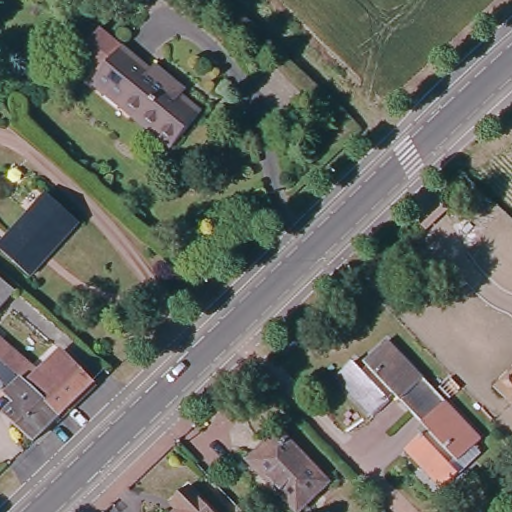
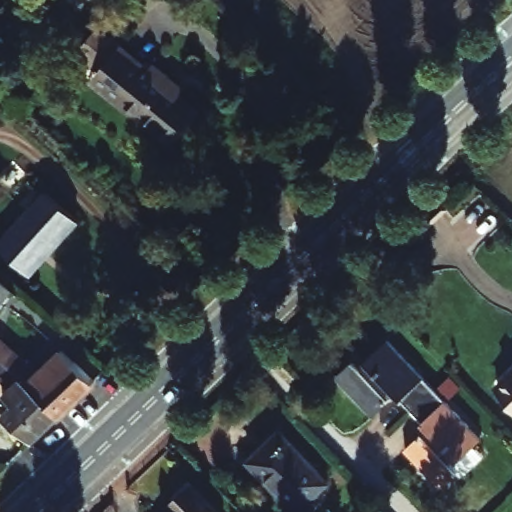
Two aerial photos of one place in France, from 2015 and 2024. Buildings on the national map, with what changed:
unchanged [(108,78),(85,60),(103,36),(128,55),(153,76),(157,70),(180,89),(176,95),(203,116),(175,150),(126,111),(99,89),(108,78)]
unchanged [(74,217),(26,273),(0,250),(0,243),(43,191),(74,217)]
unchanged [(19,291),(0,312),(0,274),(19,291)]
unchanged [(46,376),(65,356),(76,367),(80,365),(98,385),(64,417),(0,358),(0,335),(46,376)]
unchanged [(414,413),(413,415),(399,401),(376,423),(336,384),(353,367),(363,377),(369,371),(364,366),(384,346),(434,395),(414,413)]
unchanged [(64,417),(37,443),(6,416),(18,403),(10,395),(10,389),(0,380),(0,358),(64,417)]
unchanged [(512,372),(512,403),(497,386),(512,372)]
unchanged [(414,413),(434,395),(479,439),(461,456),(453,448),(444,458),(459,473),(442,491),(402,452),(426,428),(413,415),(414,413)]
unchanged [(328,481),(297,510),(251,461),(282,433),(328,481)]
unchanged [(211,512),(176,512),(180,508),(173,501),(188,487),(211,512)]

